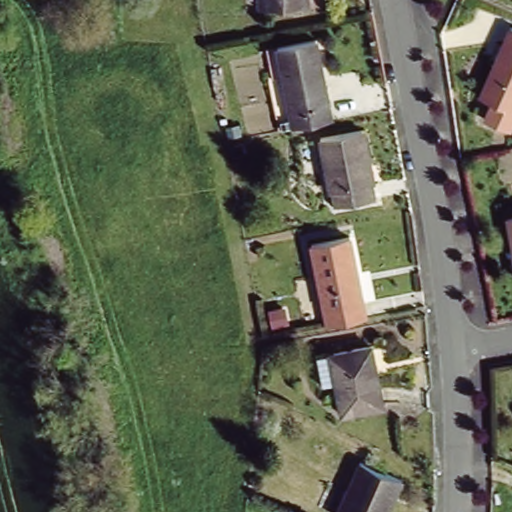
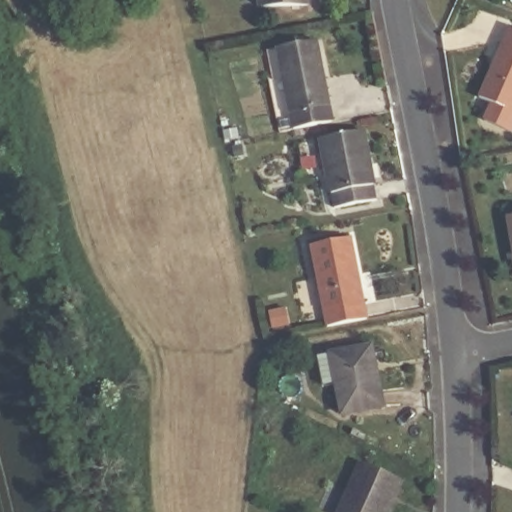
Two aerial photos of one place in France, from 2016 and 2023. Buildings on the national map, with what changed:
unchanged [(266,4),(266,0),(311,0),(266,4)]
unchanged [(512,128),(511,131),(481,118),(489,98),(479,94),(507,25),(512,27),(512,128)]
unchanged [(290,125),(276,47),(314,40),(328,117),(290,125)]
unchanged [(359,133),(371,198),(332,205),(320,140),(359,133)]
unchanged [(512,215),(512,232),(509,216),(512,215)]
unchanged [(331,323),(316,244),(354,237),(369,315),(331,323)]
unchanged [(380,407),(343,414),(332,354),(369,348),(380,407)]
unchanged [(403,485),(398,498),(394,496),(387,512),(341,512),(361,467),(403,485)]

